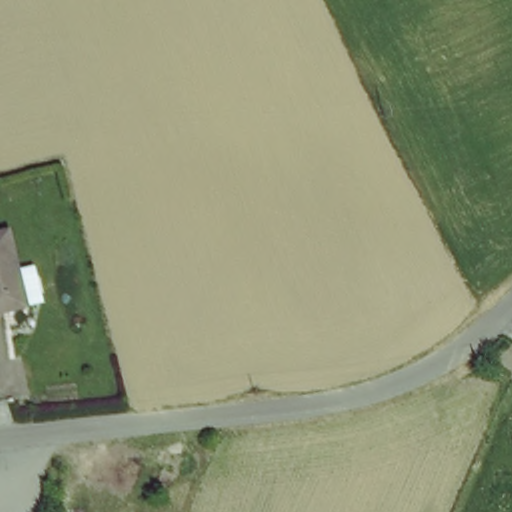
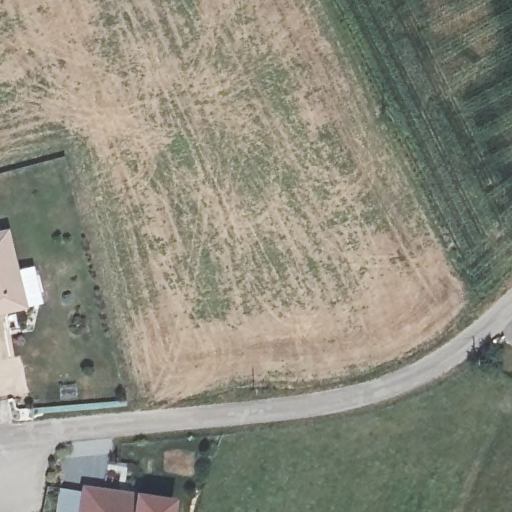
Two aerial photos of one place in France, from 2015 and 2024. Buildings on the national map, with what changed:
unchanged [(22,276),(15,279),(22,310),(0,315),(0,235),(12,232),(22,276)]
new [(80,490),(81,484),(175,498),(173,512),(54,512),(58,488),(80,490)]

